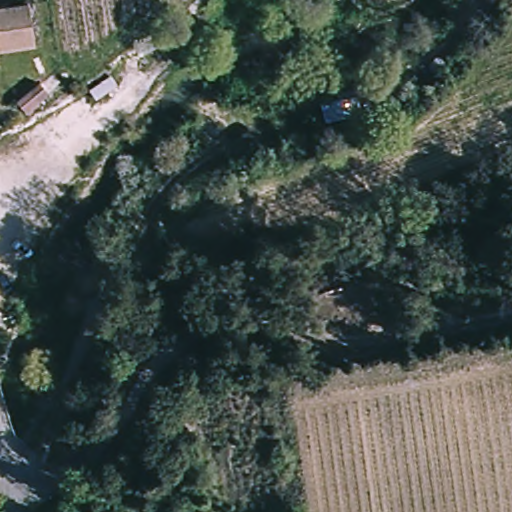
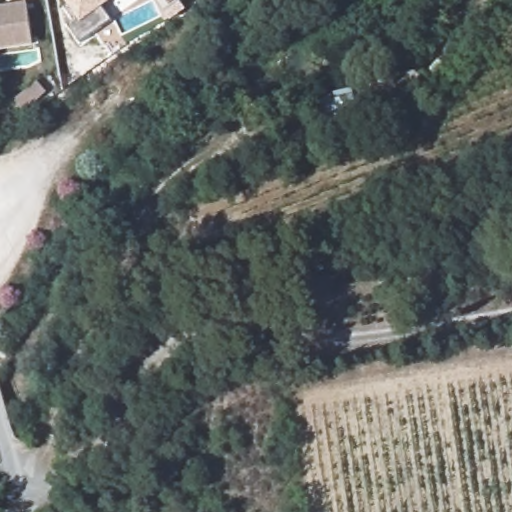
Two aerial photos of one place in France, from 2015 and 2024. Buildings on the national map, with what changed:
new [(113,21),(83,46),(68,26),(75,21),(65,9),(70,5),(66,0),(114,0),(103,8),(113,21)]
new [(138,0),(139,0),(138,1),(138,0)]
unchanged [(34,47),(0,50),(0,11),(29,8),(34,47)]

